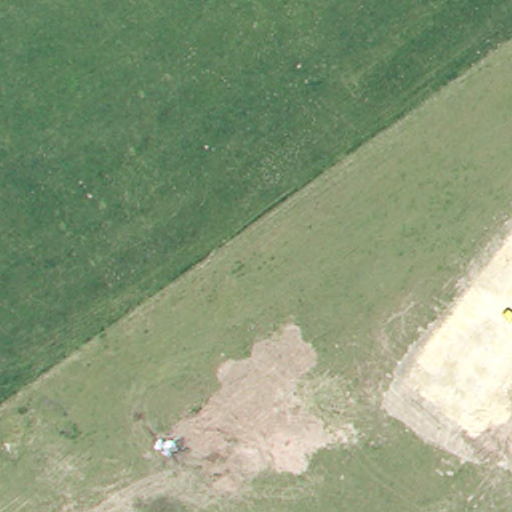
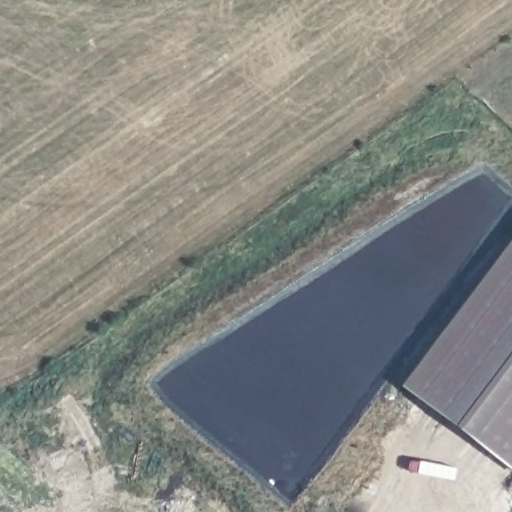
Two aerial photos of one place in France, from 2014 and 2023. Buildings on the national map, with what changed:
new [(398,384),(512,236),(512,469),(398,384)]

